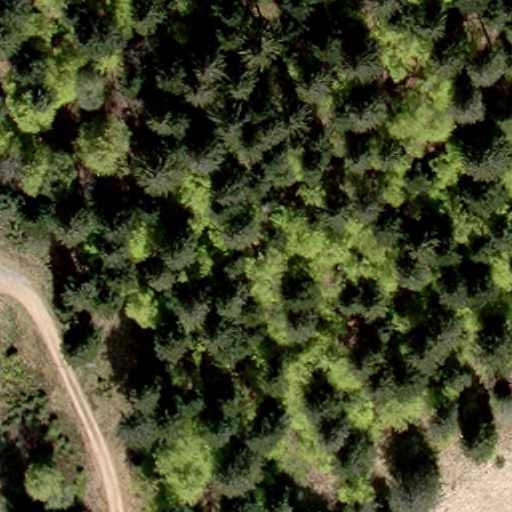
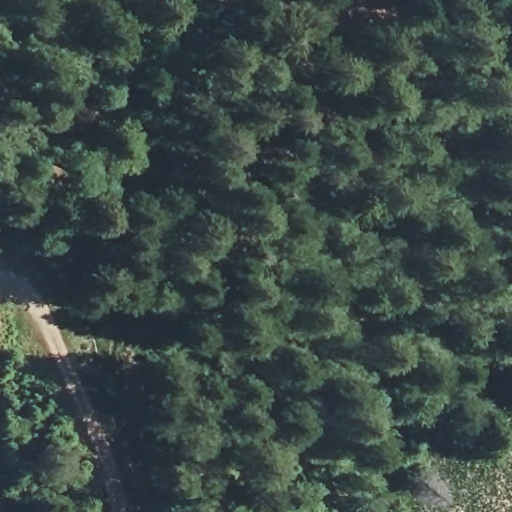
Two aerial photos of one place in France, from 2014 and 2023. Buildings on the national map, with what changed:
[]

